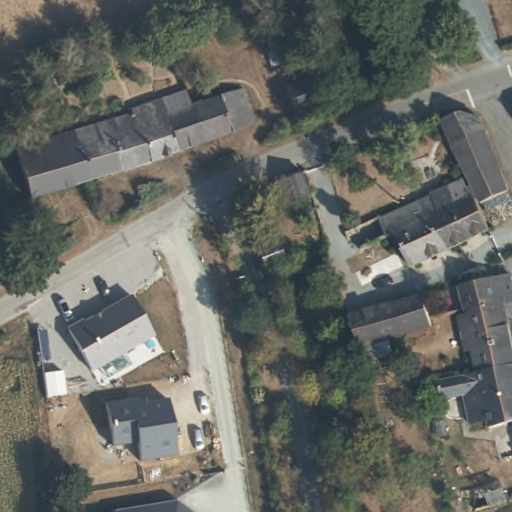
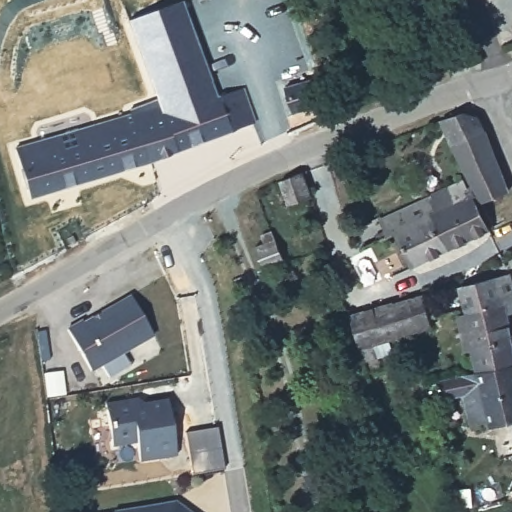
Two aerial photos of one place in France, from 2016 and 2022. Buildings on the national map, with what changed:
new [(181,1),(218,101),(192,110),(188,96),(160,105),(137,45),(128,20),(181,1)]
unchanged [(316,70),(322,94),(297,100),(291,76),(316,70)]
unchanged [(135,117),(135,112),(188,96),(192,110),(221,100),(245,92),(257,126),(232,134),(142,165),(32,195),(20,146),(66,134),(135,117)]
unchanged [(438,117),(461,110),(478,116),(483,129),(509,190),(482,200),(470,179),(450,141),(438,117)]
unchanged [(309,190),(307,192),(308,201),(304,205),(297,206),(292,200),(287,201),(280,177),(301,167),(309,190)]
unchanged [(449,247),(427,197),(431,195),(466,180),(489,227),(449,247)]
unchanged [(395,230),(387,214),(427,197),(449,247),(416,262),(408,265),(395,230)]
unchanged [(254,244),(275,234),(283,254),(262,262),(254,244)]
unchanged [(461,285),(510,271),(512,281),(512,297),(468,309),(461,285)]
unchanged [(373,351),(358,355),(356,340),(347,311),(391,300),(420,292),(426,315),(427,323),(399,330),(383,333),(387,349),(373,351)]
unchanged [(134,297),(157,339),(91,373),(68,330),(134,297)]
unchanged [(459,371),(477,368),(472,348),(465,349),(458,312),(462,311),(468,309),(512,297),(512,308),(506,310),(512,338),(512,410),(469,418),(459,371)]
unchanged [(139,400),(140,405),(169,399),(179,457),(141,463),(136,442),(111,447),(104,406),(139,400)]
unchanged [(512,498),(467,507),(462,484),(511,475),(512,484),(512,498)]
unchanged [(181,493),(194,501),(210,512),(121,512),(120,507),(181,493)]

